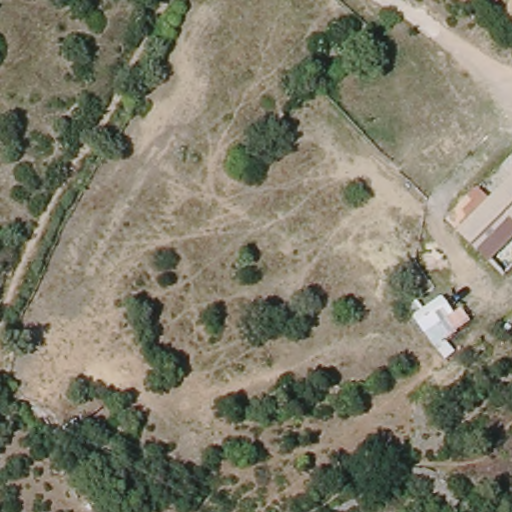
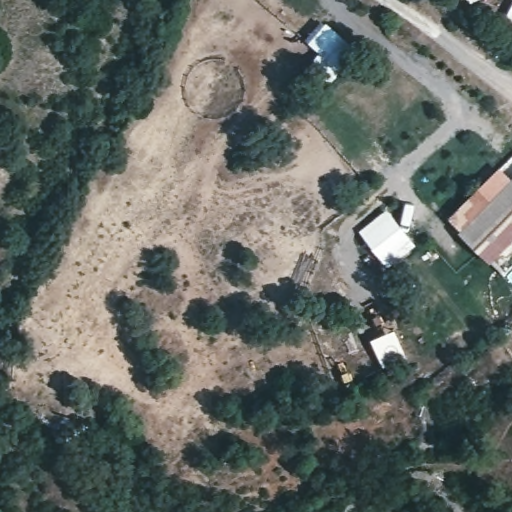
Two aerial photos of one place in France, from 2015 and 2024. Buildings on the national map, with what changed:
unchanged [(503,20),(512,2),(512,25),(503,20)]
unchanged [(501,275),(455,230),(512,172),(512,263),(501,275)]
new [(386,208),(415,245),(387,267),(358,231),(386,208)]

